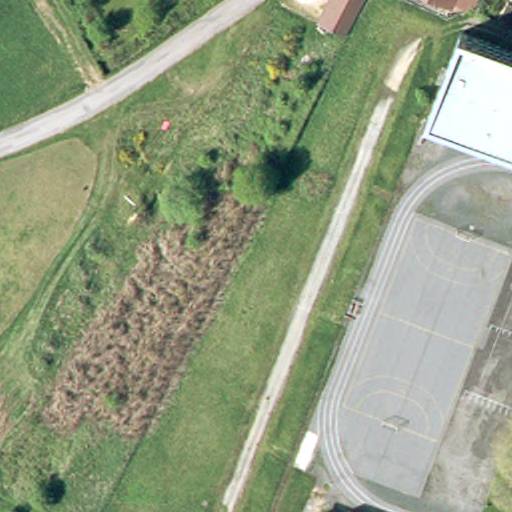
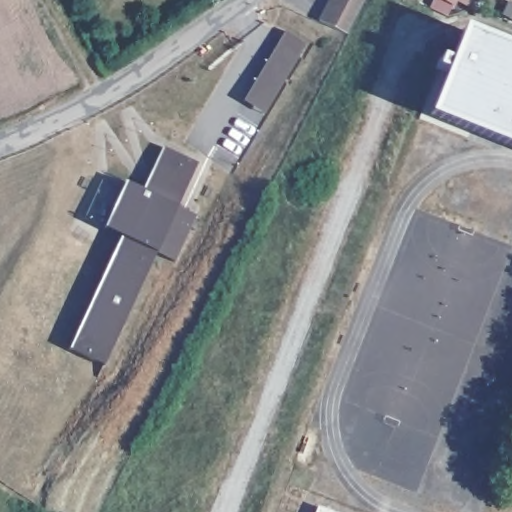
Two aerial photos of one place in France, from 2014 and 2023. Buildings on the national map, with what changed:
unchanged [(344,32),(317,17),(328,0),(364,0),(344,32)]
unchanged [(459,6),(446,0),(462,0),(459,6)]
new [(286,30),(306,44),(265,112),(244,100),(286,30)]
unchanged [(512,54),(512,150),(432,119),(464,35),(512,54)]
new [(198,163),(178,206),(197,216),(174,262),(156,254),(103,367),(68,350),(121,237),(103,227),(123,182),(141,192),(163,147),(198,163)]

